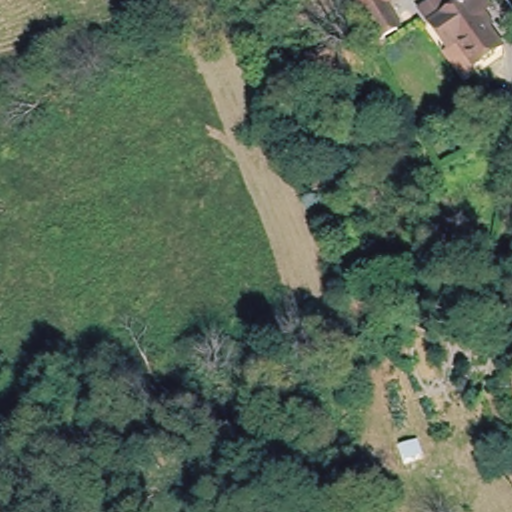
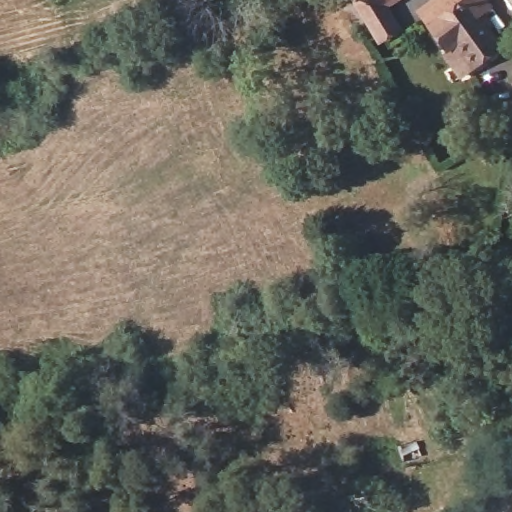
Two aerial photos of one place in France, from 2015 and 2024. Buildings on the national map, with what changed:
unchanged [(355,6),(363,0),(407,0),(408,2),(390,15),(403,34),(382,48),(355,6)]
unchanged [(432,29),(441,23),(430,9),(443,0),(485,0),(492,10),(480,19),(503,53),(478,73),(460,48),(451,55),(432,29)]

